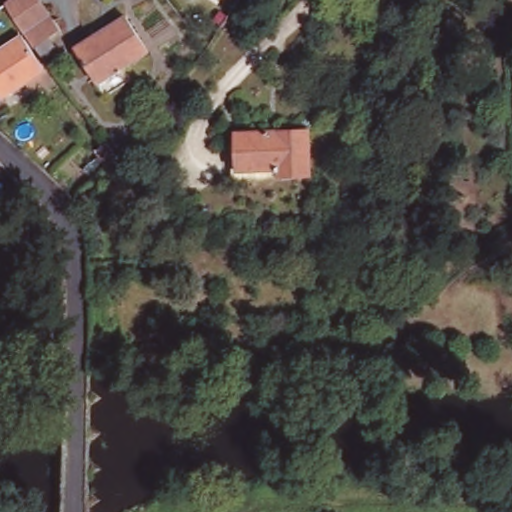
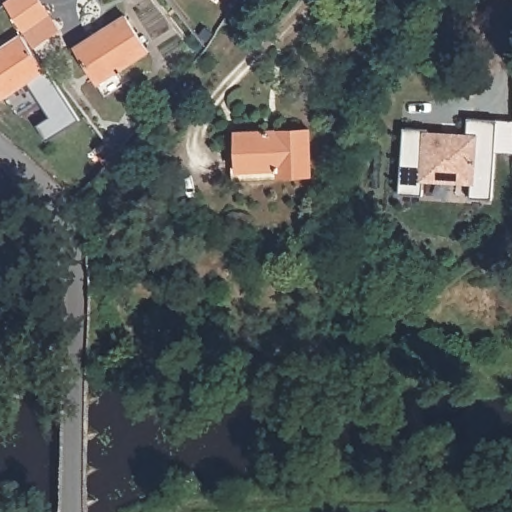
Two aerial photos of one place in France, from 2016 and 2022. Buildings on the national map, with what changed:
unchanged [(45,69),(32,50),(0,5),(8,0),(37,0),(58,30),(45,40),(59,60),(45,69)]
unchanged [(122,17),(145,51),(114,72),(95,85),(72,51),(122,17)]
unchanged [(19,37),(41,69),(2,98),(0,96),(0,51),(19,37)]
new [(423,130),(466,133),(467,119),(496,120),(491,198),(469,197),(471,185),(422,182),(423,194),(399,193),(403,128),(423,130)]
unchanged [(312,181),(279,181),(278,174),(238,174),(238,154),(237,135),(248,135),(312,135),(312,181)]
unchanged [(100,142),(112,158),(103,168),(91,150),(100,142)]

